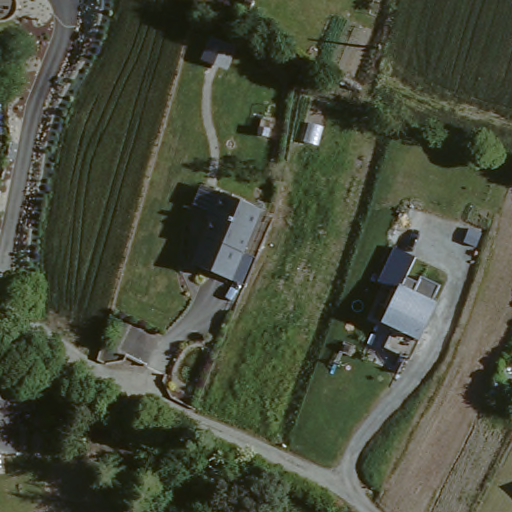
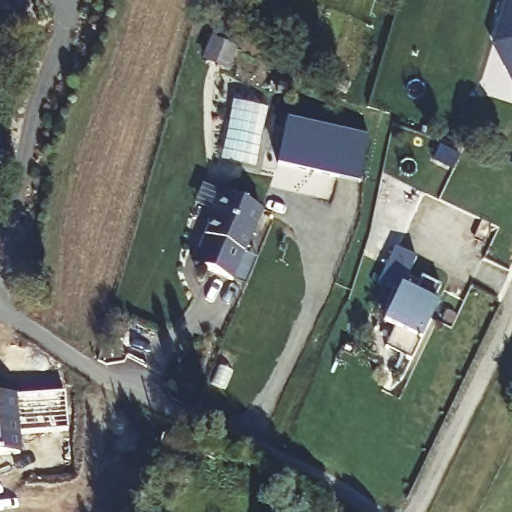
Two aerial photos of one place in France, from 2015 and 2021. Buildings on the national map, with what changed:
new [(512,0),(512,83),(501,63),(509,38),(493,34),(504,0),(512,0)]
unchanged [(204,34),(227,43),(220,61),(197,53),(204,34)]
new [(277,164),(287,118),(369,135),(359,182),(277,164)]
unchanged [(0,170),(0,145),(7,145),(4,170),(0,170)]
unchanged [(244,288),(230,282),(192,265),(214,214),(209,213),(218,193),(260,210),(242,254),(255,259),(244,288)]
unchanged [(392,247),(413,258),(402,283),(414,289),(421,280),(439,288),(436,300),(421,342),(381,325),(396,290),(380,276),(392,247)]
unchanged [(0,456),(0,400),(22,397),(24,419),(10,421),(13,454),(0,456)]
unchanged [(142,484),(153,464),(167,473),(157,493),(142,484)]

